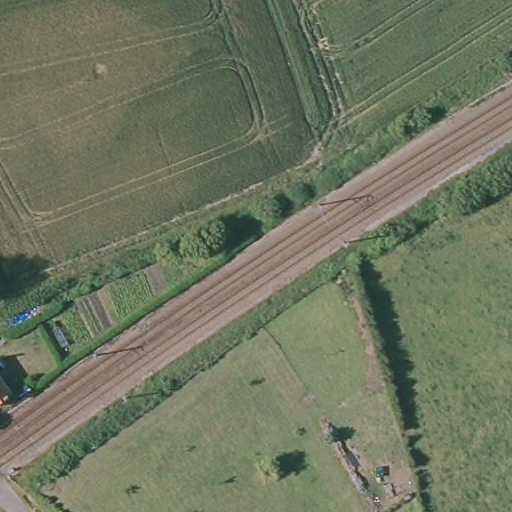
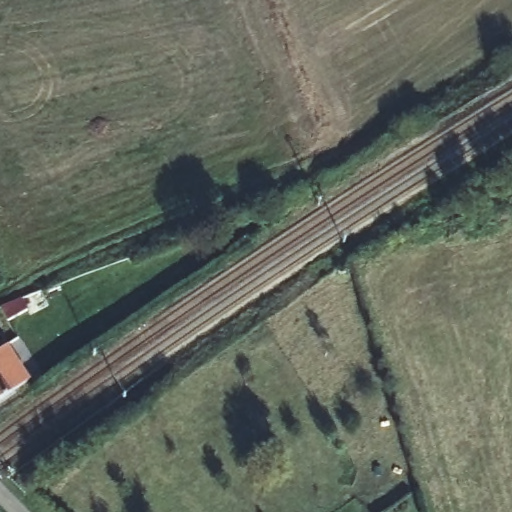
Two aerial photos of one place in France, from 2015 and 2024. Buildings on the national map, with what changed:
new [(8,348),(32,383),(0,403),(0,353),(8,348)]
demolished [(2,370),(5,375),(0,378),(0,371),(2,370)]
demolished [(7,394),(0,399),(0,384),(7,394)]

